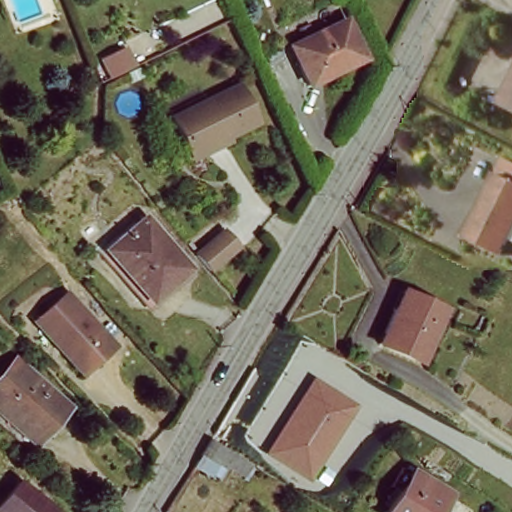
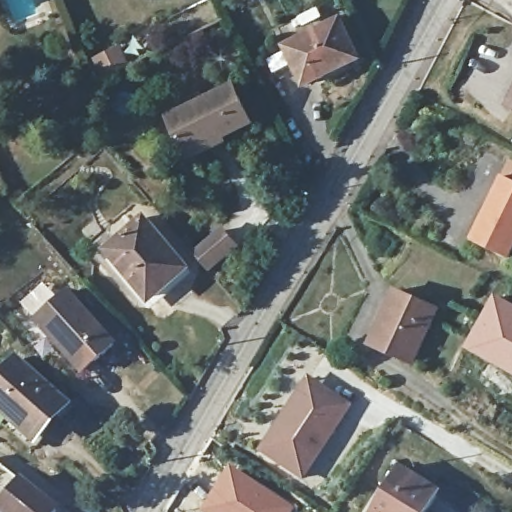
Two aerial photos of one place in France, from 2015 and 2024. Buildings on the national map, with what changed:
unchanged [(287,45),(340,19),(359,56),(305,83),(287,45)]
new [(120,46),(129,65),(105,76),(96,57),(120,46)]
unchanged [(189,155),(184,145),(169,114),(234,83),(252,121),(221,136),(222,139),(189,155)]
unchanged [(472,241),(493,203),(507,178),(509,174),(512,168),(512,250),(507,260),(472,241)]
unchanged [(106,248),(143,217),(168,245),(187,270),(168,286),(165,283),(148,297),(106,248)]
unchanged [(194,252),(205,243),(223,227),(236,244),(218,260),(208,268),(194,252)]
unchanged [(385,307),(394,289),(437,310),(411,361),(371,342),(388,308),(385,307)]
unchanged [(37,320),(67,291),(113,345),(84,371),(37,320)]
new [(495,293),(512,302),(512,375),(463,347),(495,293)]
unchanged [(0,374),(15,358),(65,403),(32,438),(0,409),(0,374)]
unchanged [(301,394),(310,379),(329,391),(350,405),(342,418),(304,477),(264,451),(294,404),(301,394)]
unchanged [(207,445),(210,439),(249,463),(244,472),(230,463),(227,462),(205,448),(207,445)]
unchanged [(376,512),(391,489),(380,483),(392,464),(403,470),(439,493),(426,512),(376,512)]
new [(296,509),(294,512),(204,512),(231,469),(296,509)]
unchanged [(54,512),(0,512),(0,508),(20,484),(54,512)]

